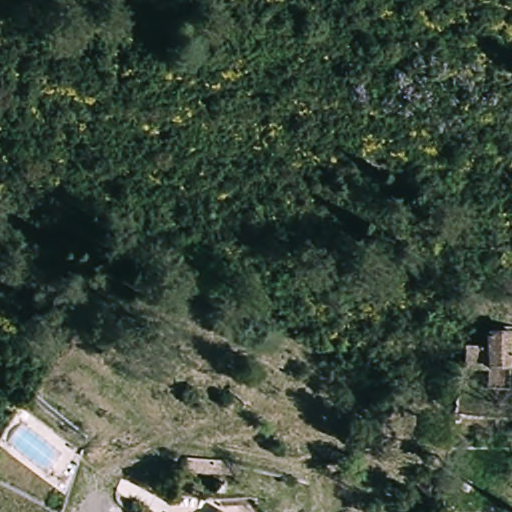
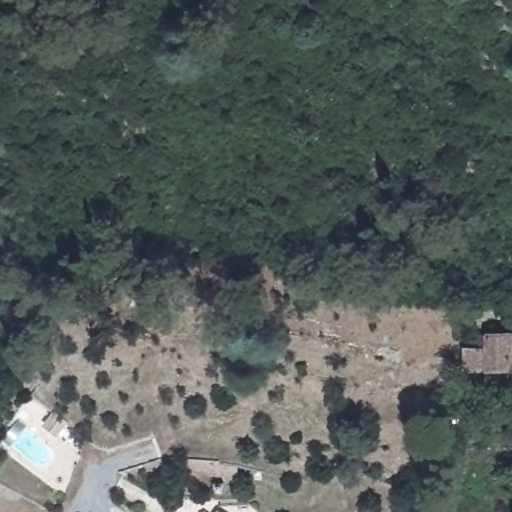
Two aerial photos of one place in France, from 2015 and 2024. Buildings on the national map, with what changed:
unchanged [(509,371),(461,367),(464,345),(488,346),(489,335),(512,337),(509,371)]
unchanged [(56,512),(55,512),(0,482),(0,467),(4,459),(67,491),(56,512)]

